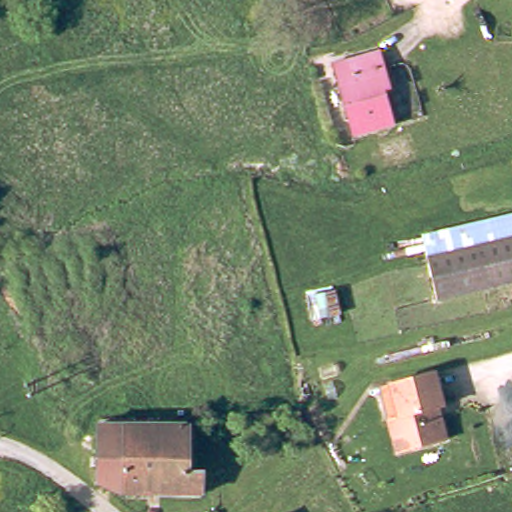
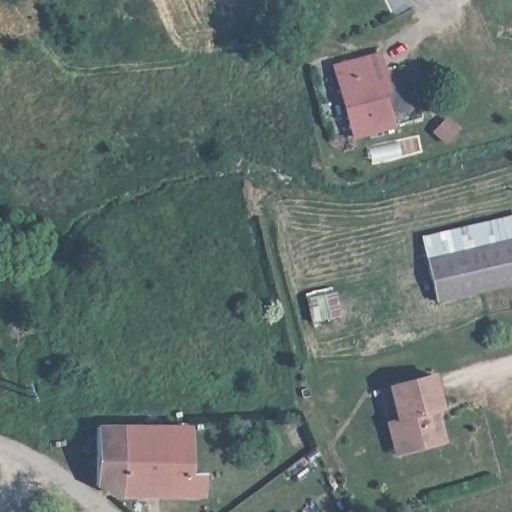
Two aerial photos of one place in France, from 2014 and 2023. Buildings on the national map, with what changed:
unchanged [(400,88),(394,90),(404,126),(364,136),(345,64),(390,52),(400,88)]
unchanged [(424,237),(512,217),(512,283),(436,300),(424,237)]
unchanged [(435,373),(443,404),(438,408),(447,444),(391,455),(381,424),(395,421),(385,385),(435,373)]
unchanged [(208,495),(128,494),(101,483),(103,426),(195,427),(194,471),(209,472),(208,495)]

